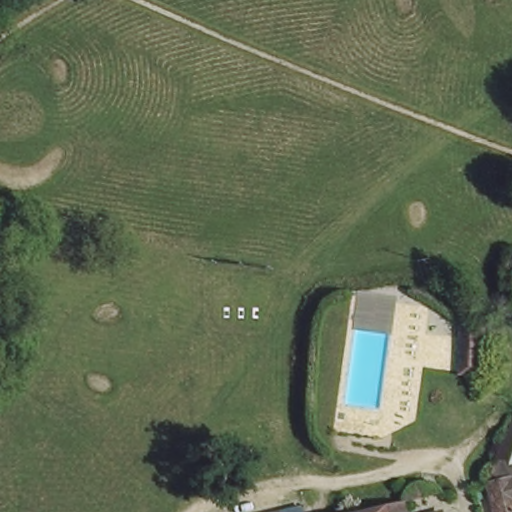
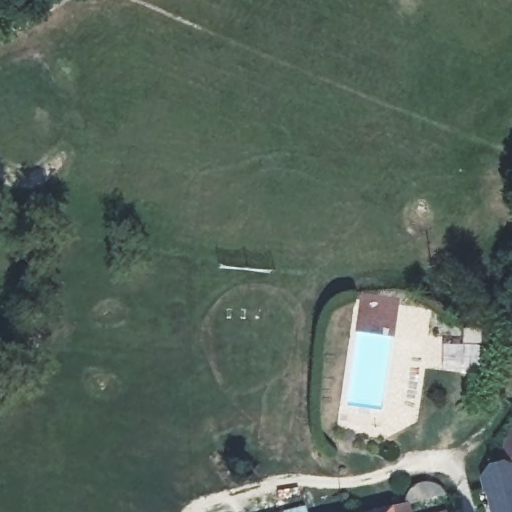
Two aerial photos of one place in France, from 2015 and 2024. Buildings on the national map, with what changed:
unchanged [(462,326),(489,328),(486,379),(459,375),(462,326)]
unchanged [(482,470),(495,466),(512,435),(512,512),(495,512),(482,470)]
unchanged [(409,503),(410,498),(412,488),(419,481),(424,481),(429,481),(436,485),(441,490),(442,498),(410,506),(409,503)]
unchanged [(407,506),(408,512),(386,512),(407,506)]

